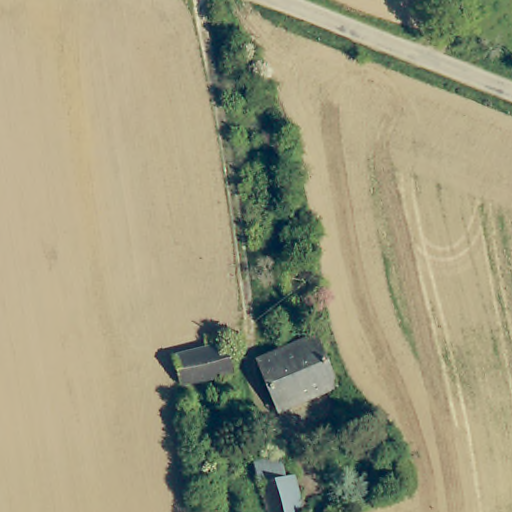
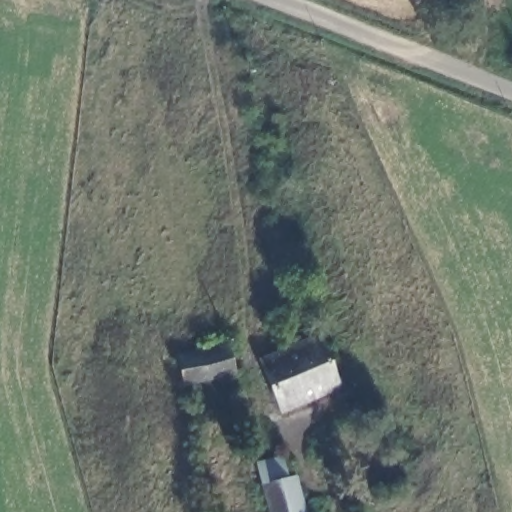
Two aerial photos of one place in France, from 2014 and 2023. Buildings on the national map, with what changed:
unchanged [(316,335),(337,384),(283,408),(266,356),(316,335)]
unchanged [(174,353),(230,338),(237,365),(181,382),(174,353)]
unchanged [(370,420),(360,432),(342,419),(350,406),(370,420)]
unchanged [(276,449),(283,469),(290,467),(302,512),(269,512),(254,455),(276,449)]

